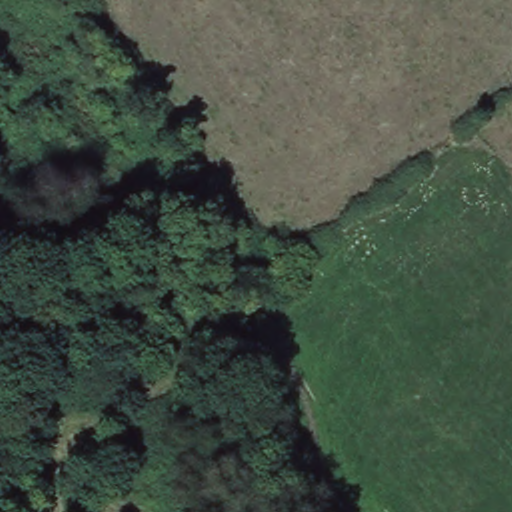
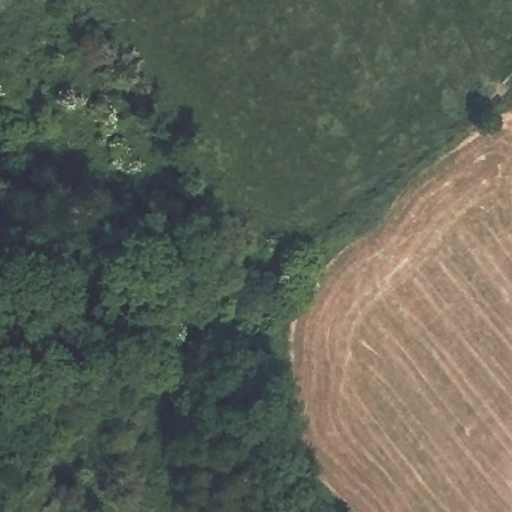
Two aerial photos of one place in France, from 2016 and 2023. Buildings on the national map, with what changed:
[]

